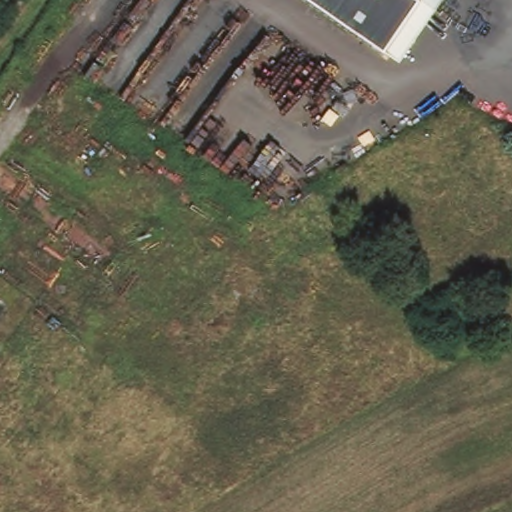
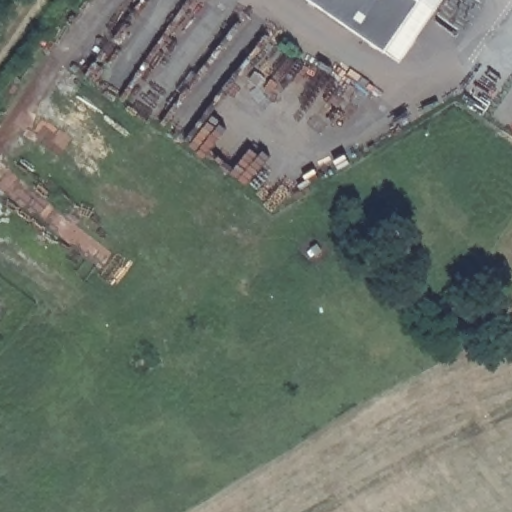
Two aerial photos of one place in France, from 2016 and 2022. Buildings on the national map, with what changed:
unchanged [(438,12),(403,62),(385,49),(312,0),(421,0),(438,12)]
unchanged [(421,0),(446,0),(438,12),(421,0)]

